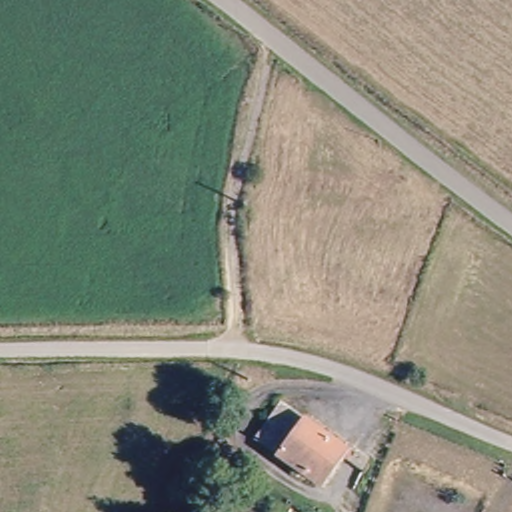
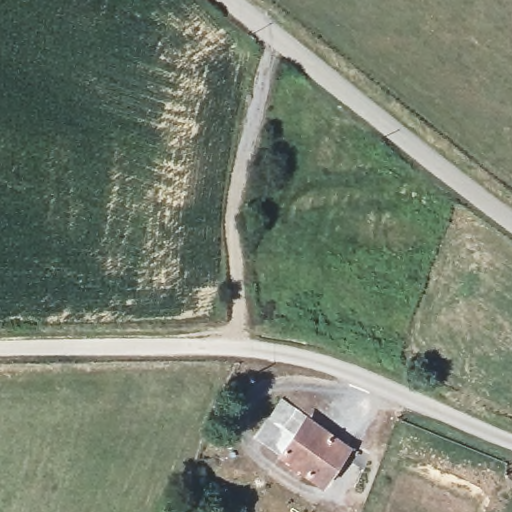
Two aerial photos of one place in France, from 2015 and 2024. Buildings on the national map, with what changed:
unchanged [(305,413),(349,444),(320,488),(276,456),(253,438),(281,395),(305,413)]

